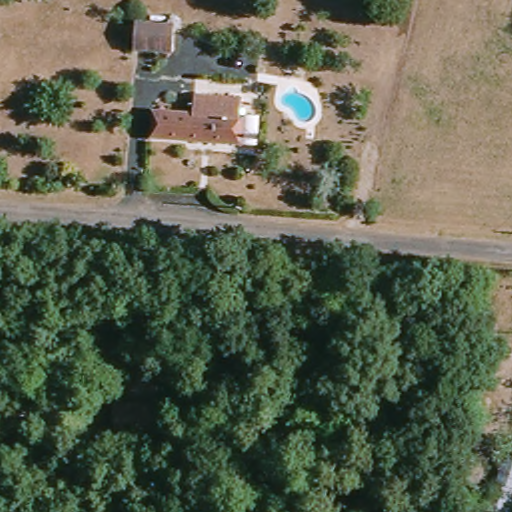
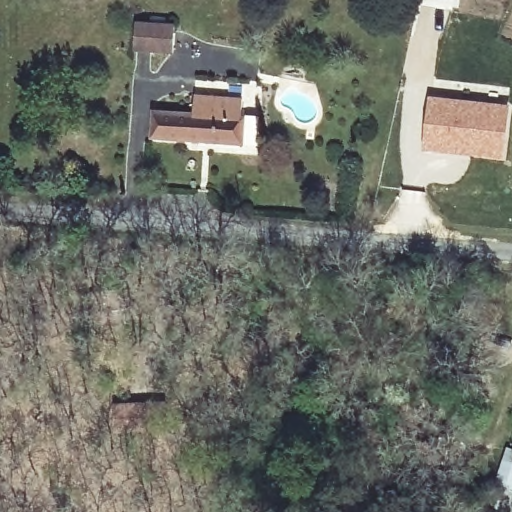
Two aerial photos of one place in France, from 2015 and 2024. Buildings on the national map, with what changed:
new [(460,0),(458,10),(417,3),(417,0),(460,0)]
unchanged [(137,51),(136,24),(179,24),(178,52),(137,51)]
unchanged [(243,96),(246,141),(151,146),(151,118),(186,117),(187,97),(243,96)]
new [(423,149),(429,98),(509,107),(503,159),(423,149)]
unchanged [(168,431),(120,430),(120,407),(168,407),(168,431)]
unchanged [(512,461),(512,512),(487,512),(504,459),(512,461)]

